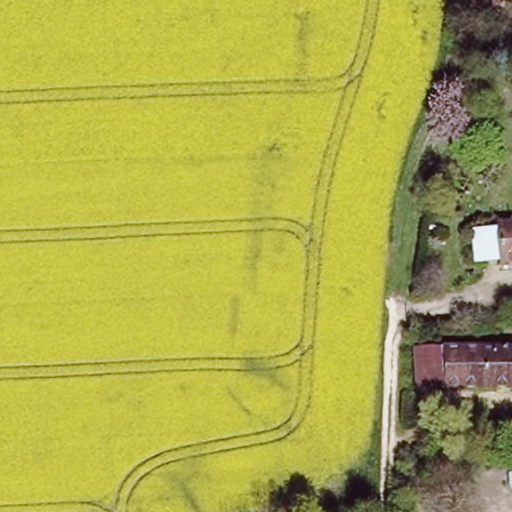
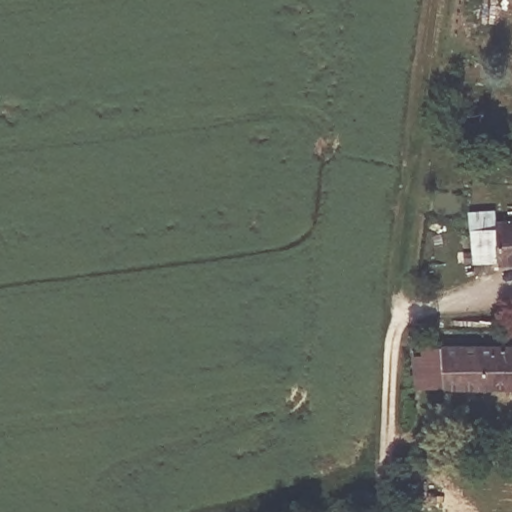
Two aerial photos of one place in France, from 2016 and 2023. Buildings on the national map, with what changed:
unchanged [(487,260),(487,251),(464,252),(463,233),(486,232),(486,219),(512,219),(512,259),(487,260)]
unchanged [(498,350),(498,346),(512,346),(512,385),(443,384),(445,348),(498,350)]
unchanged [(445,348),(443,384),(415,383),(416,347),(445,348)]

